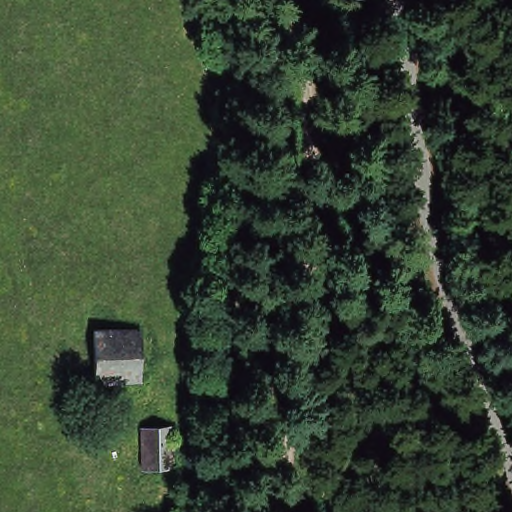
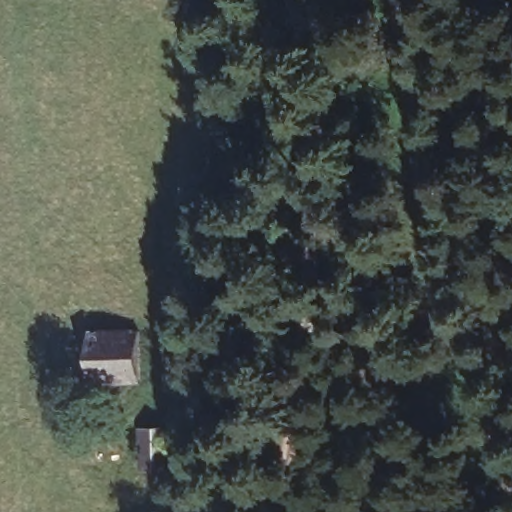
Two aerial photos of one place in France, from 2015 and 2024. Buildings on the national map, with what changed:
unchanged [(99,335),(144,336),(143,386),(97,386),(99,335)]
unchanged [(171,429),(172,468),(141,470),(140,430),(171,429)]

